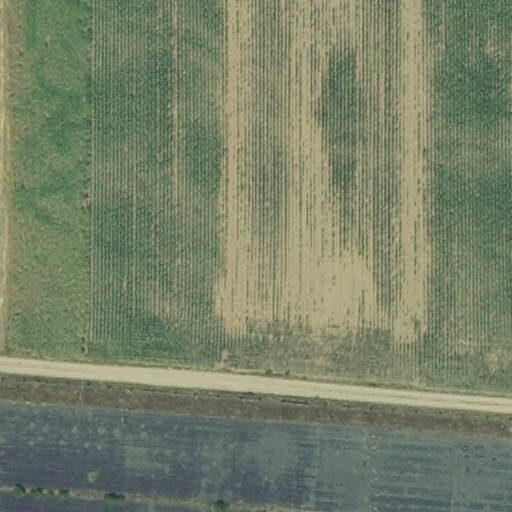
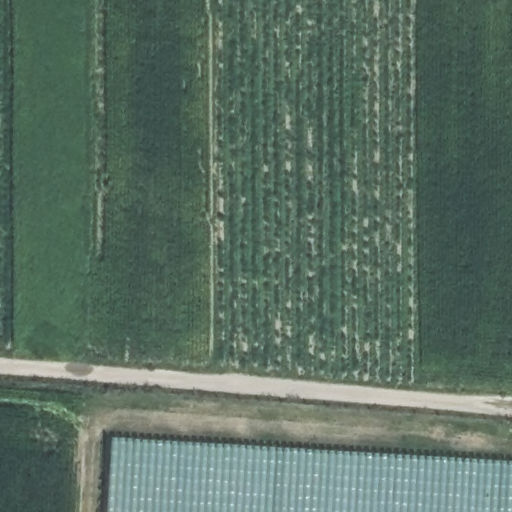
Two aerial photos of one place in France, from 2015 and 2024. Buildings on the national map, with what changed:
new [(512,512),(104,512),(107,436),(512,457),(512,512)]

